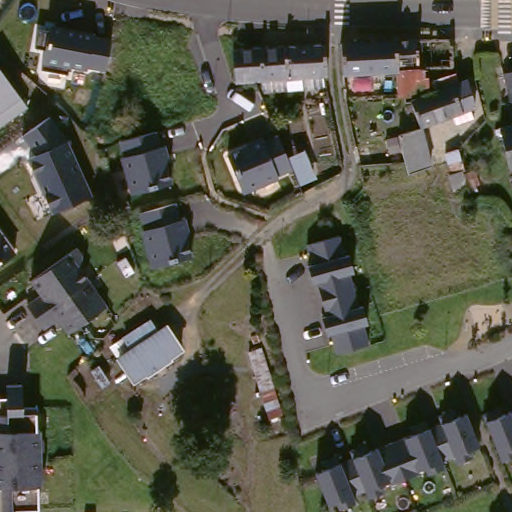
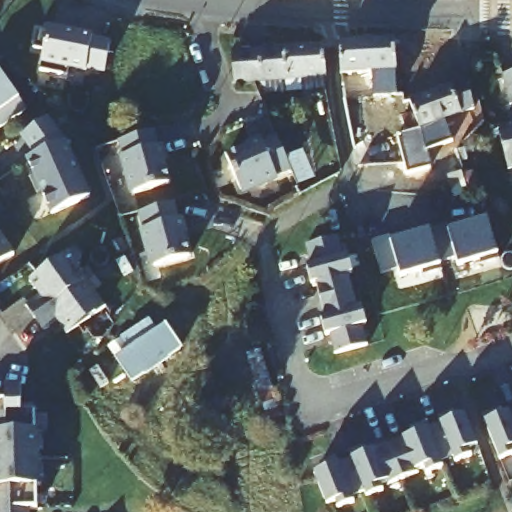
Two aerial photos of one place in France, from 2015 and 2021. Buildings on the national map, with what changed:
unchanged [(106,69),(87,67),(86,70),(68,67),(67,73),(42,69),(44,50),(36,49),(38,26),(95,33),(94,37),(112,39),(106,69)]
unchanged [(461,63),(432,64),(433,84),(425,90),(411,90),(405,90),(403,37),(461,35),(461,63)]
unchanged [(405,90),(386,91),(385,66),(350,68),(348,39),(403,37),(405,90)]
unchanged [(270,86),(266,77),(263,76),(242,77),(240,46),(332,41),(335,73),(333,73),(308,75),(309,84),(270,86)]
unchanged [(0,127),(0,72),(19,97),(27,108),(0,127)]
unchanged [(503,74),(512,72),(512,102),(510,103),(503,74)]
unchanged [(483,103),(428,123),(417,95),(425,93),(474,76),(483,103)]
unchanged [(51,213),(29,160),(35,157),(22,139),(50,118),(67,142),(90,198),(51,213)]
unchanged [(512,122),(512,162),(503,124),(512,122)]
unchanged [(440,162),(416,169),(414,159),(407,132),(429,124),(440,162)]
unchanged [(171,187),(133,199),(118,144),(156,132),(171,187)]
unchanged [(285,157),(302,152),(313,181),(295,188),(289,173),(270,179),(271,183),(239,193),(227,154),(280,137),(285,157)]
unchanged [(443,154),(456,149),(463,174),(461,175),(467,195),(453,199),(446,173),(449,172),(443,154)]
unchanged [(190,261),(153,273),(140,215),(175,206),(190,261)]
new [(500,261),(481,266),(480,261),(458,267),(457,258),(440,262),(442,271),(424,276),(423,272),(401,277),(399,271),(381,275),(373,241),(390,236),(392,241),(448,225),(449,230),(488,219),(500,261)]
unchanged [(0,266),(0,232),(16,255),(0,266)]
unchanged [(340,257),(345,256),(350,274),(344,276),(354,308),(359,307),(364,326),(359,327),(364,345),(332,354),(331,355),(326,337),(325,335),(321,336),(317,322),(316,318),(322,316),(312,286),(312,284),(308,285),(305,275),(303,267),(307,266),(304,254),(302,246),(335,237),(340,257)]
unchanged [(82,247),(87,255),(83,268),(110,305),(72,331),(63,319),(48,329),(40,317),(31,304),(46,293),(36,279),(82,247)]
unchanged [(127,343),(148,330),(156,342),(170,332),(184,354),(137,387),(122,365),(136,356),(127,343)]
unchanged [(10,403),(9,391),(24,390),(25,414),(38,413),(39,438),(43,438),(44,443),(47,443),(47,458),(44,459),(44,469),(47,469),(48,483),(45,484),(45,490),(41,491),(42,512),(0,512),(0,403),(10,403)]
unchanged [(476,450),(468,452),(471,459),(454,466),(451,460),(439,465),(441,472),(425,477),(424,472),(423,472),(418,474),(419,476),(387,488),(386,486),(380,489),(382,496),(366,501),(364,496),(351,500),(353,506),(338,512),(337,512),(335,507),(326,510),(313,477),(321,473),(319,466),(334,460),(336,467),(350,462),(347,455),(347,454),(363,448),(366,455),(409,438),(407,431),(409,430),(421,425),(423,425),(426,432),(438,427),(435,419),(437,419),(452,413),(454,420),(463,417),(474,447),(476,450)]
unchanged [(512,461),(512,463),(495,470),(492,462),(479,428),(477,425),(495,418),(497,425),(505,422),(512,419),(512,456),(510,457),(512,461)]

